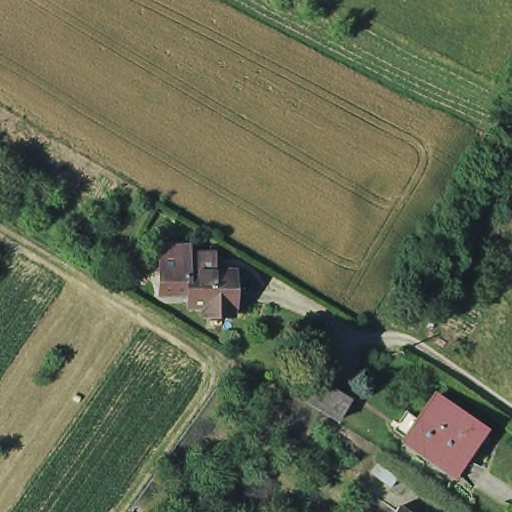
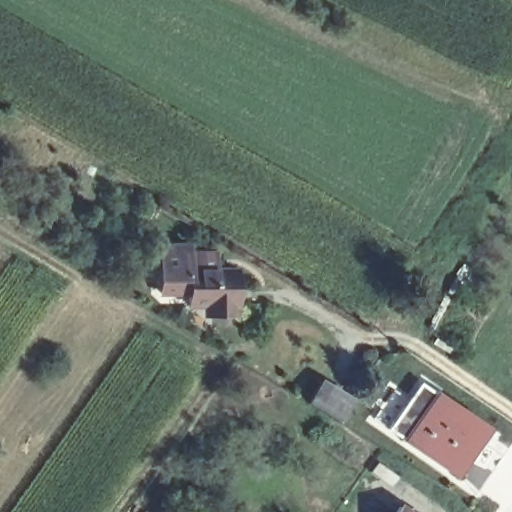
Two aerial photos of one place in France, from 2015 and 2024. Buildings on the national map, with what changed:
unchanged [(210,305),(195,305),(195,291),(167,292),(167,243),(195,243),(195,252),(217,252),(223,252),(223,269),(242,269),(242,304),(240,305),(240,310),(240,316),(210,316),(210,305)]
unchanged [(322,377),(352,395),(339,417),(310,399),(322,377)]
unchanged [(495,427),(463,471),(417,440),(405,431),(416,414),(428,423),(448,394),(495,427)]
unchanged [(395,476),(388,486),(368,472),(375,462),(395,476)]
unchanged [(395,512),(403,500),(420,512),(395,512)]

